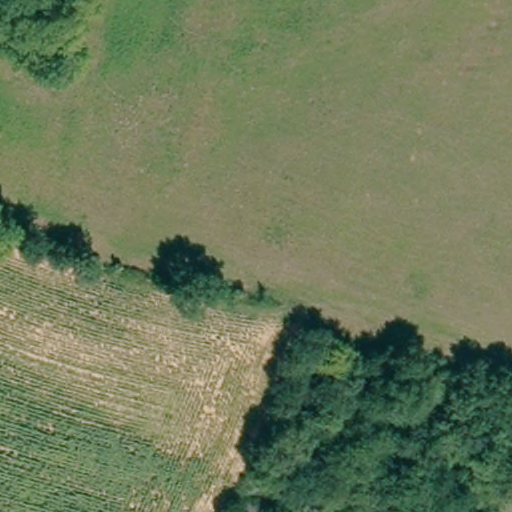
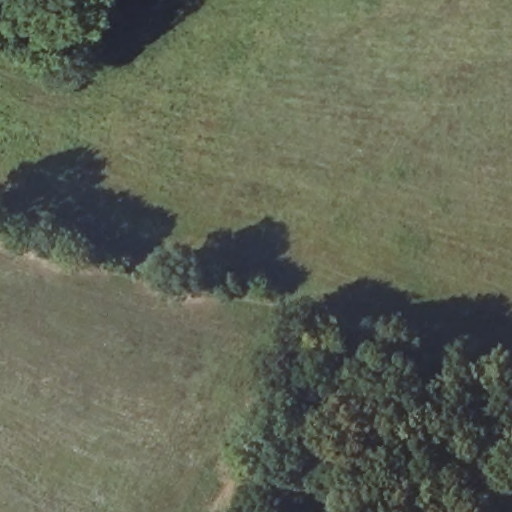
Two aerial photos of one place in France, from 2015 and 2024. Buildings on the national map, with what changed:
[]

